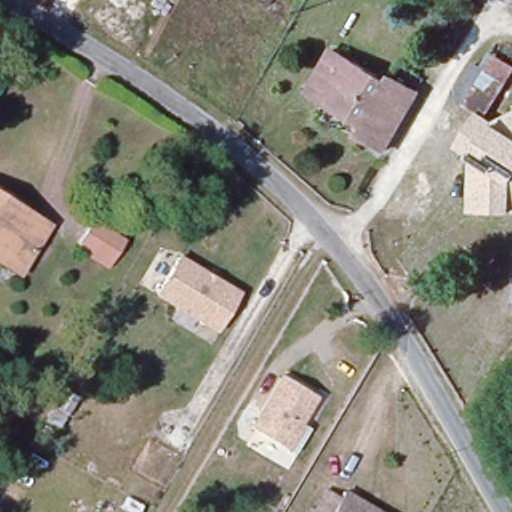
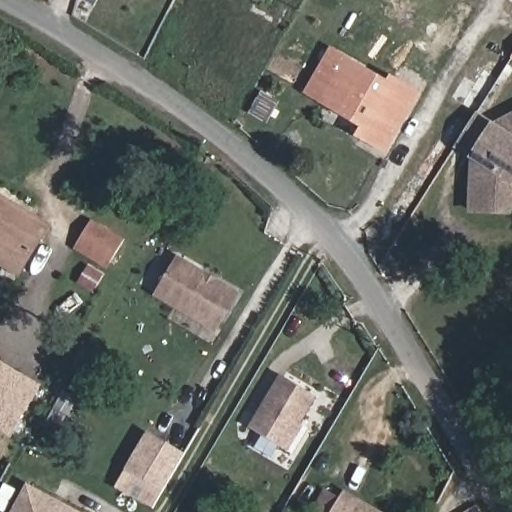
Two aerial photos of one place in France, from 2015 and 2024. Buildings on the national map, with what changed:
unchanged [(351,140),(356,127),(303,93),(330,50),(365,72),(365,84),(380,81),(385,87),(390,76),(410,90),(419,96),(380,157),(371,152),(351,140)]
unchanged [(486,118),(477,112),(450,97),(470,59),(481,64),(488,50),(512,63),(512,73),(486,118)]
unchanged [(486,118),(495,122),(512,114),(512,213),(471,214),(471,160),(455,148),(477,112),(486,118)]
unchanged [(0,192),(37,211),(47,217),(22,260),(14,274),(4,267),(0,265),(0,192)]
unchanged [(127,240),(109,272),(92,263),(76,255),(96,221),(111,230),(127,240)]
unchanged [(242,299),(220,336),(158,296),(181,258),(242,299)]
new [(0,359),(44,385),(13,437),(0,430),(0,359)]
unchanged [(314,389),(292,428),(297,431),(288,449),(245,426),(277,370),(314,389)]
new [(163,490),(125,468),(147,430),(185,452),(163,490)]
new [(26,483),(82,512),(11,512),(26,483)]
unchanged [(381,512),(318,512),(316,511),(325,491),(338,498),(341,491),(381,512)]

